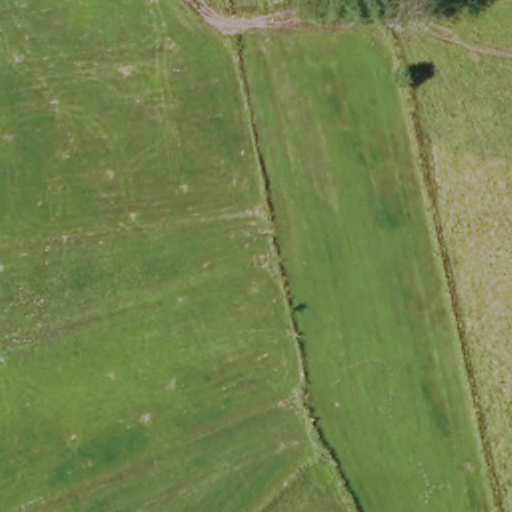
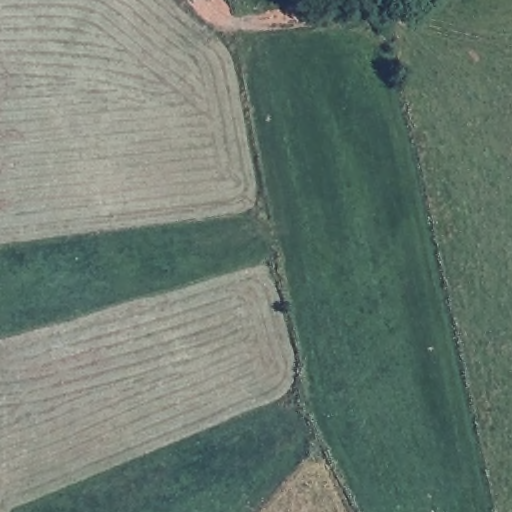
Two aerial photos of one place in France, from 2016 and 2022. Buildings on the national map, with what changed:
[]

